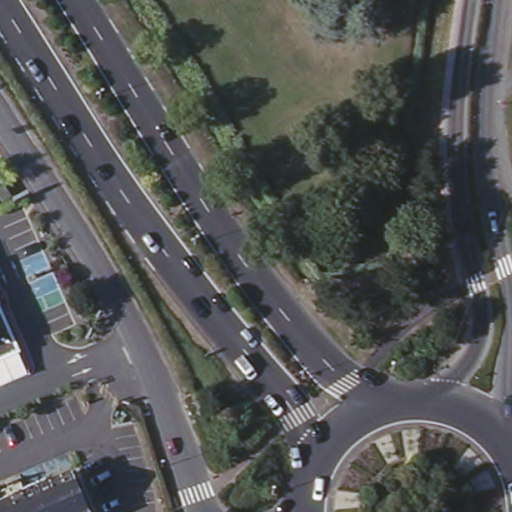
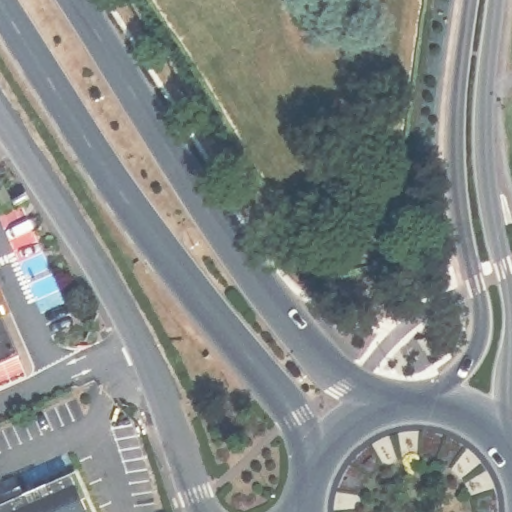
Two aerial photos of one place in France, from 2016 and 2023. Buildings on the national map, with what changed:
unchanged [(1,200),(0,201),(0,200),(1,200)]
unchanged [(19,347),(0,356),(0,307),(19,347)]
unchanged [(0,512),(0,510),(73,476),(89,512),(0,512)]

